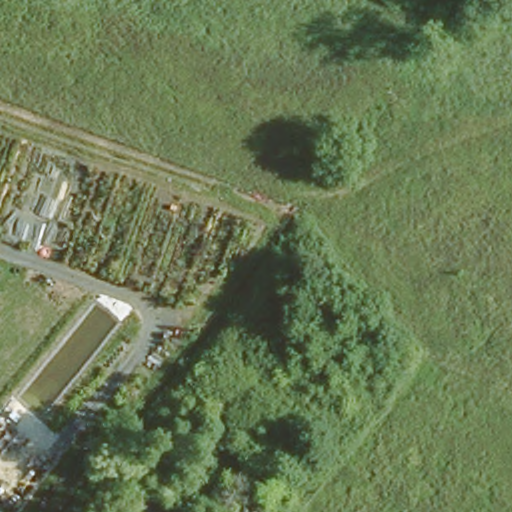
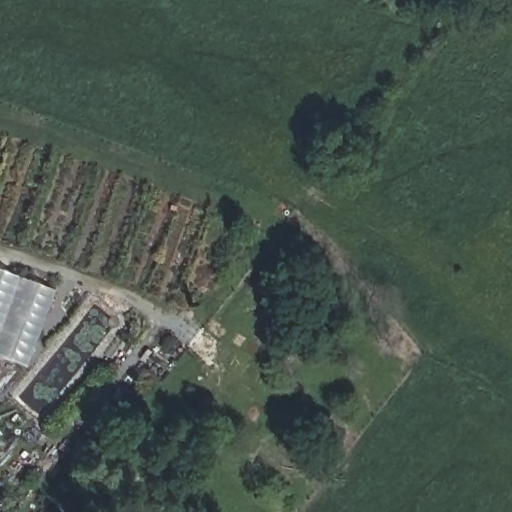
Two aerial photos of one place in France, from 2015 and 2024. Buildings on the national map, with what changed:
new [(56,292),(28,368),(0,358),(0,271),(56,292)]

